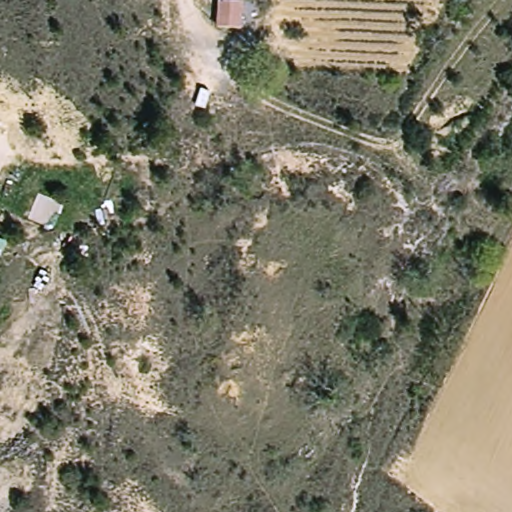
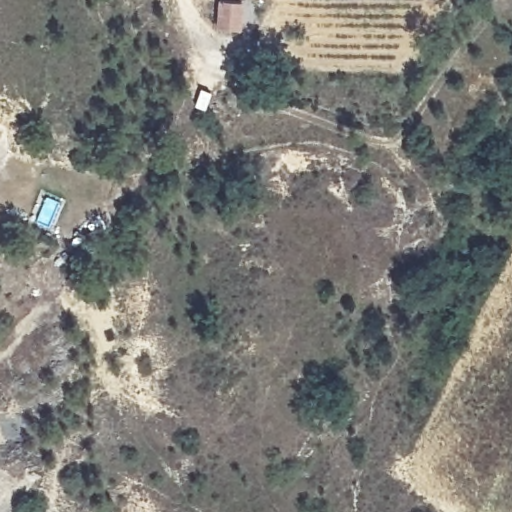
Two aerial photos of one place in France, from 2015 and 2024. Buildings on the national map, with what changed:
unchanged [(219,23),(221,0),(248,0),(247,24),(219,23)]

